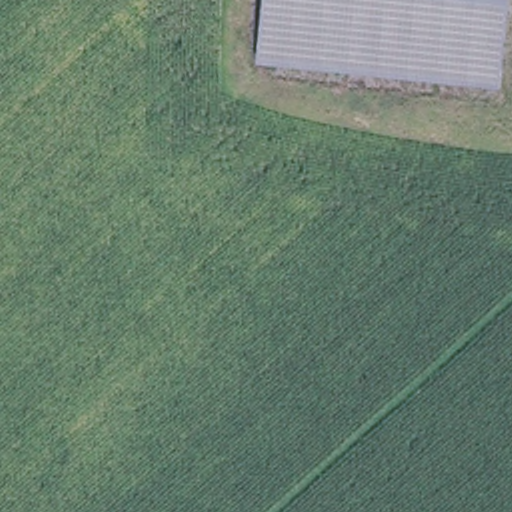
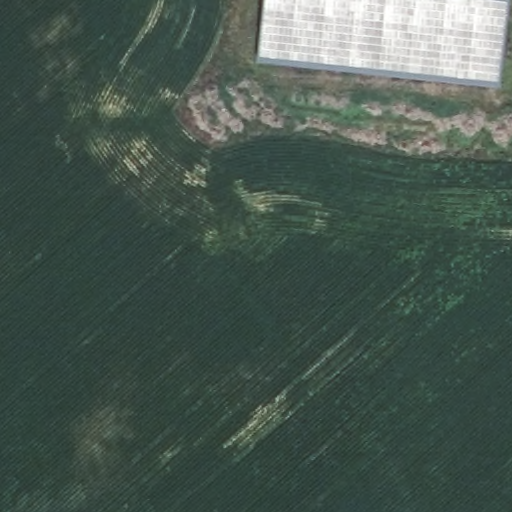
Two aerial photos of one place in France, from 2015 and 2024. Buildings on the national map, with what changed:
unchanged [(501,72),(261,49),(265,0),(508,0),(502,59),(501,72)]

